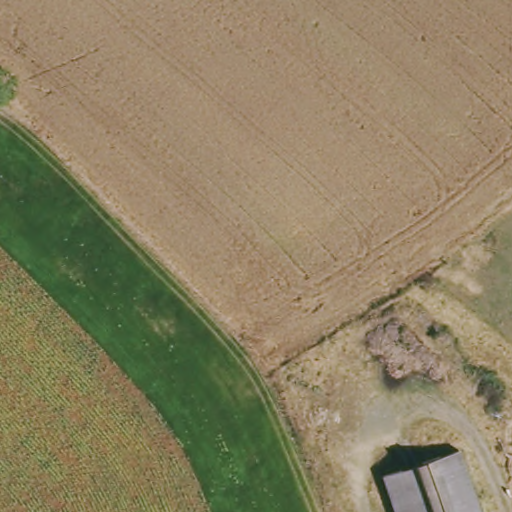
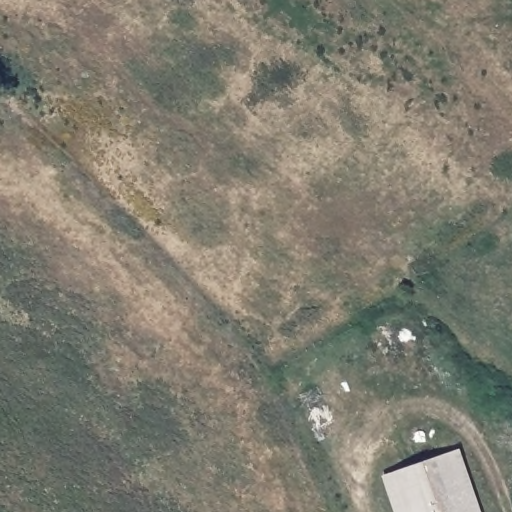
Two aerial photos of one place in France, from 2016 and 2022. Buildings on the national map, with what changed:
unchanged [(405,512),(392,469),(460,444),(482,512),(405,512)]

